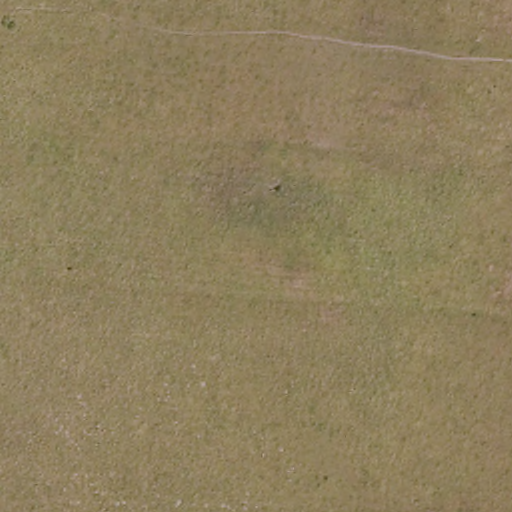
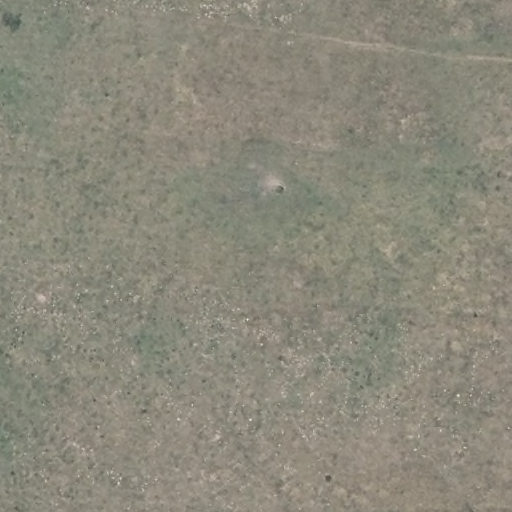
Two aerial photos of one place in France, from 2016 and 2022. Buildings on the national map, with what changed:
[]

